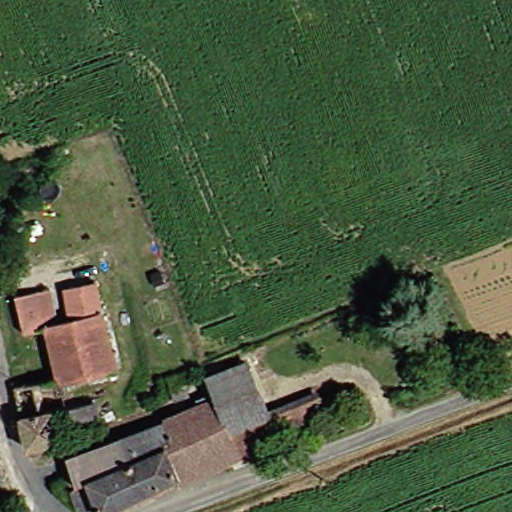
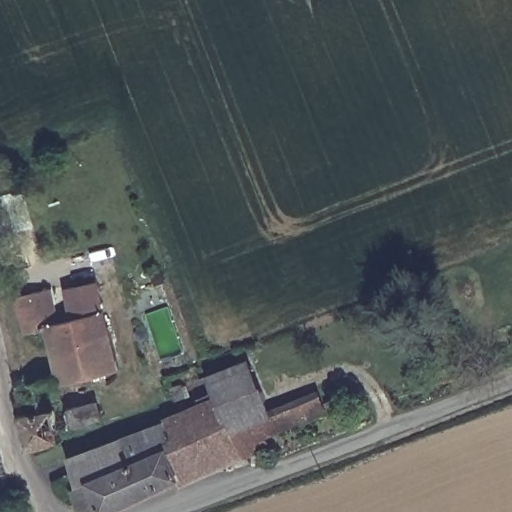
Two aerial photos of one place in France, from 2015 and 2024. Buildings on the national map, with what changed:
unchanged [(63,287),(73,322),(82,319),(74,291),(102,282),(111,311),(128,366),(100,374),(74,382),(58,328),(36,335),(25,298),(63,287)]
unchanged [(232,395),(228,397),(219,375),(256,360),(270,395),(237,409),(232,395)]
unchanged [(278,404),(326,385),(333,402),(286,421),(284,418),(246,434),(237,409),(270,395),(274,393),(278,404)]
unchanged [(191,411),(228,397),(232,395),(237,409),(246,434),(255,457),(220,471),(176,482),(117,512),(110,512),(94,509),(83,480),(75,458),(101,447),(191,411)]
unchanged [(73,407),(99,399),(106,420),(80,427),(73,407)]
unchanged [(35,443),(30,420),(57,412),(67,443),(37,452),(35,443)]

